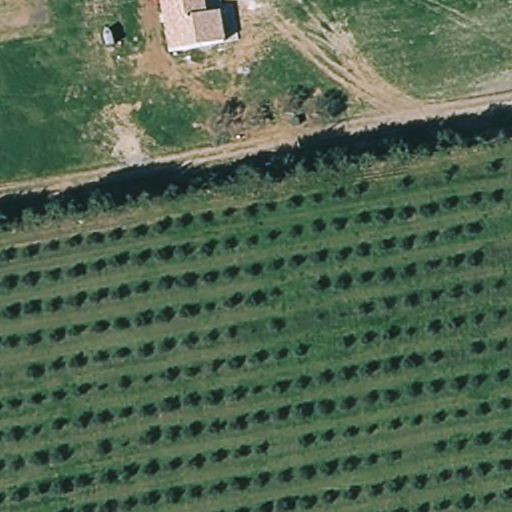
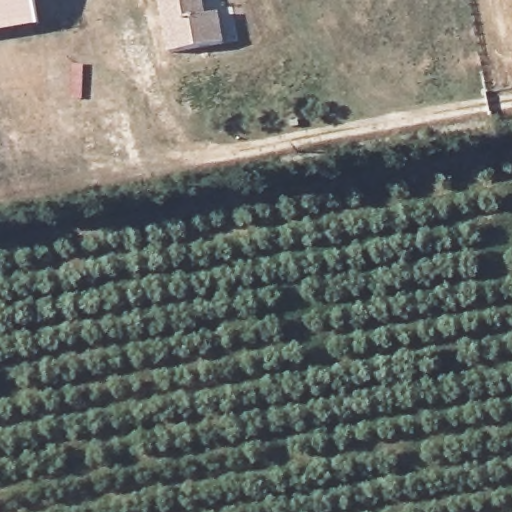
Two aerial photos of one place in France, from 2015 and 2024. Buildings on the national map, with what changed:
new [(0,34),(0,0),(35,0),(39,28),(0,34)]
unchanged [(220,13),(225,42),(168,54),(159,0),(205,0),(207,16),(220,13)]

